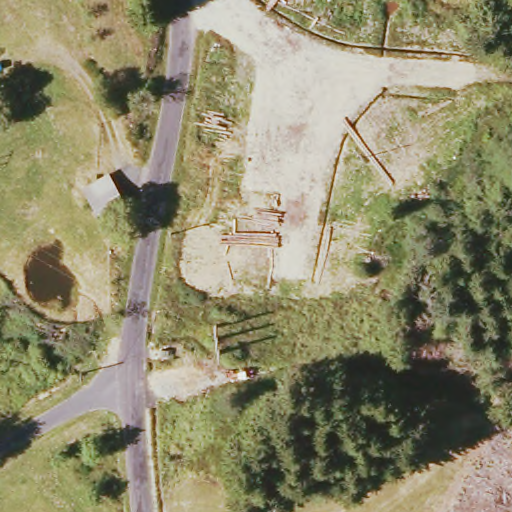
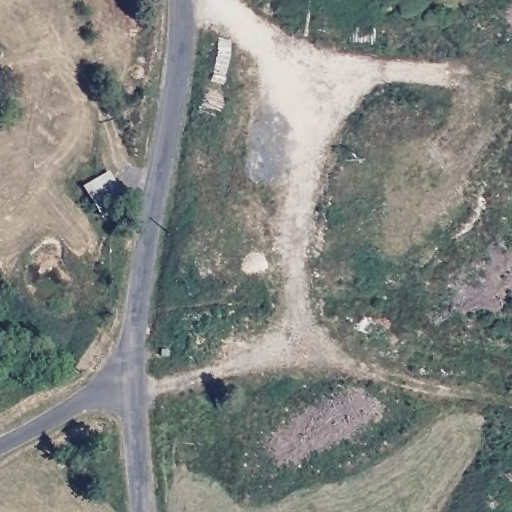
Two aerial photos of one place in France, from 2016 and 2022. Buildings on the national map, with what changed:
unchanged [(112,175),(126,204),(99,217),(87,186),(112,175)]

